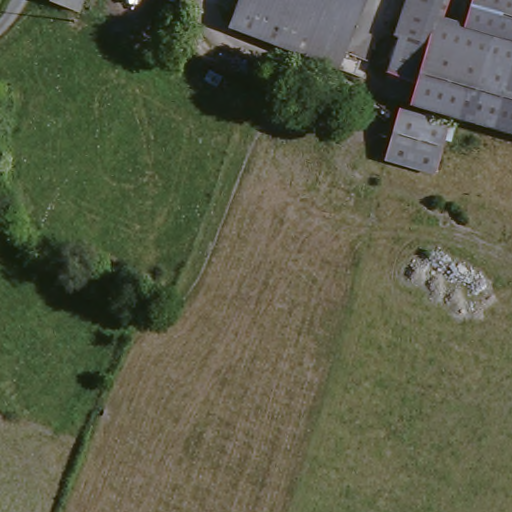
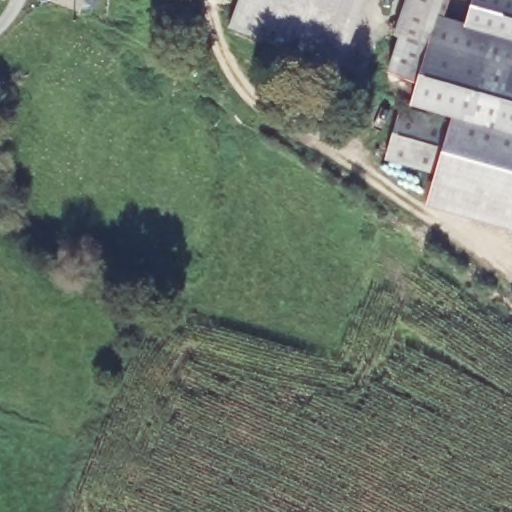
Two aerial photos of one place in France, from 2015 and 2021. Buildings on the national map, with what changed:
unchanged [(91,0),(89,7),(64,1),(64,0),(91,0)]
unchanged [(235,18),(243,0),(321,0),(302,45),(235,18)]
unchanged [(325,0),(363,15),(344,63),(302,45),(321,0),(325,0)]
unchanged [(370,0),(363,15),(325,0),(370,0)]
unchanged [(512,0),(512,131),(457,110),(456,110),(414,94),(423,74),(412,70),(410,69),(402,66),(396,64),(406,36),(400,34),(403,24),(412,0),(446,0),(445,1),(466,9),(485,15),(491,0),(512,0)]
new [(457,110),(512,131),(512,231),(427,206),(436,174),(383,159),(400,105),(409,108),(414,94),(456,110),(457,110)]

